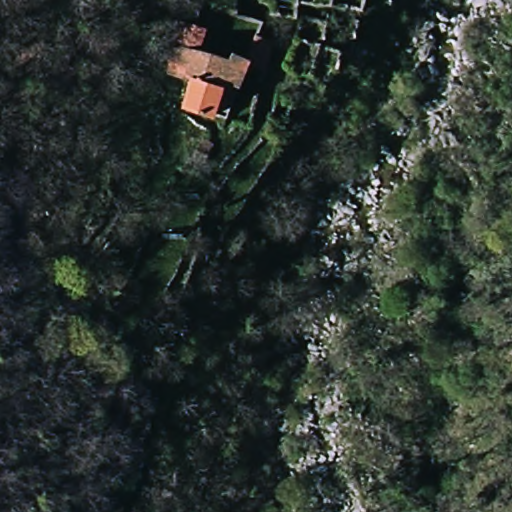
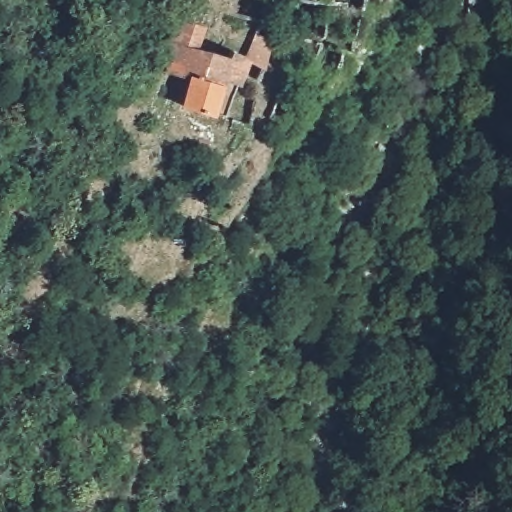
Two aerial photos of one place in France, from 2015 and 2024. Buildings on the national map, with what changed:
unchanged [(209,26),(204,43),(198,63),(193,78),(166,69),(181,19),(209,26)]
unchanged [(266,29),(283,35),(273,62),(257,55),(266,29)]
unchanged [(198,63),(204,43),(234,53),(236,47),(253,53),(241,85),(226,80),(228,73),(198,63)]
unchanged [(219,108),(188,98),(193,78),(198,63),(228,73),(226,80),(219,108)]

